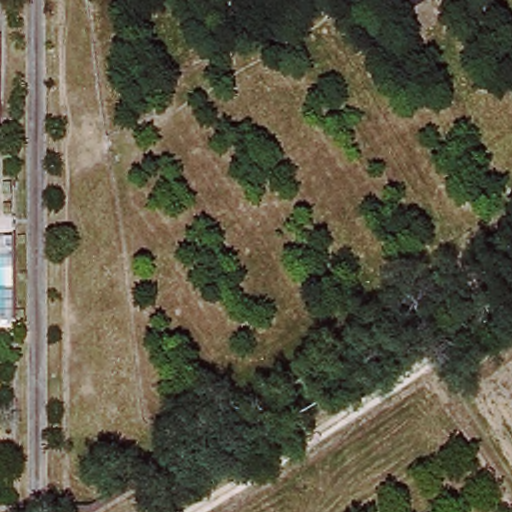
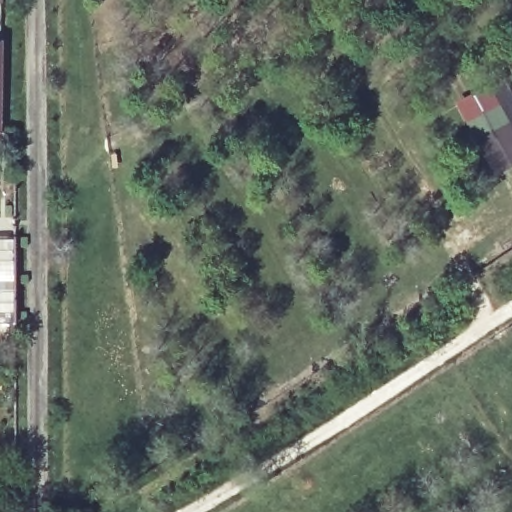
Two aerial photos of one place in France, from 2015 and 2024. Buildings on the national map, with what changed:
unchanged [(4,127),(8,127),(8,140),(0,141),(0,0),(7,0),(4,127)]
new [(512,93),(512,165),(492,175),(455,103),(505,79),(512,93)]

